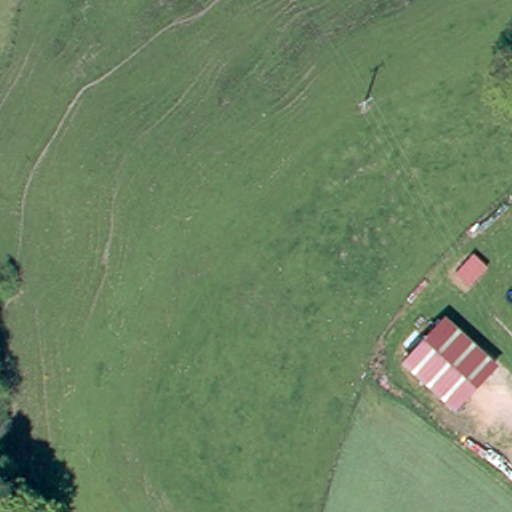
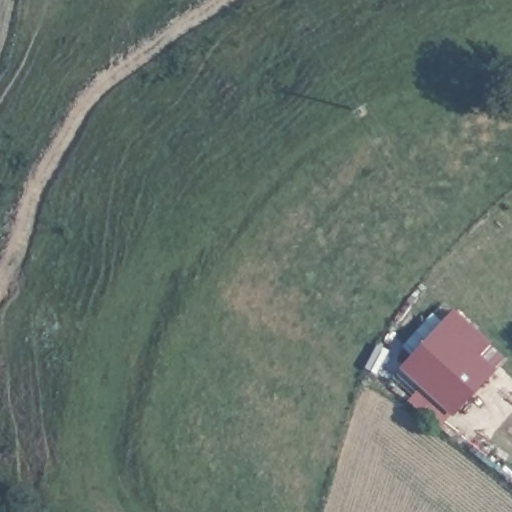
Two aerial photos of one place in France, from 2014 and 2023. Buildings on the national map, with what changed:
unchanged [(445,325),(500,373),(456,417),(401,370),(445,325)]

